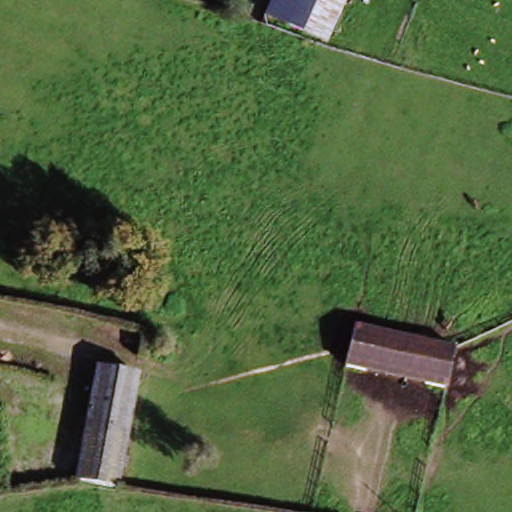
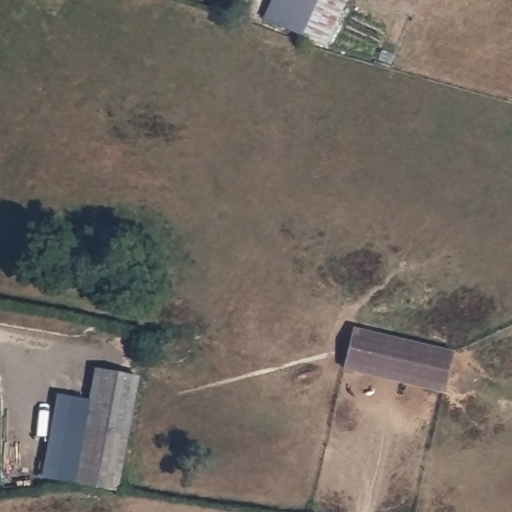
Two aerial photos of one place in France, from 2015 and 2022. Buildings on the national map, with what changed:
unchanged [(263,22),(271,0),(351,0),(329,49),(263,22)]
unchanged [(338,372),(354,324),(452,348),(439,398),(338,372)]
unchanged [(72,482),(94,360),(143,371),(122,490),(72,482)]
new [(87,399),(72,482),(41,478),(57,393),(87,399)]

